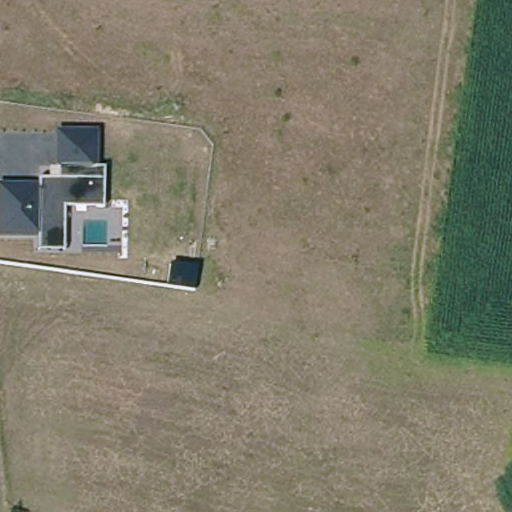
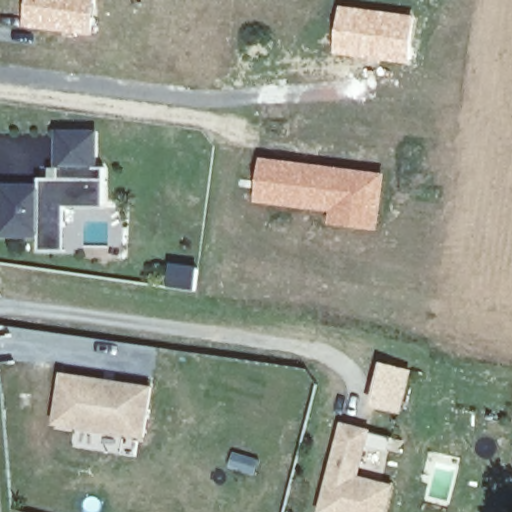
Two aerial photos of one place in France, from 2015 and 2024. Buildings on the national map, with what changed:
new [(28,0),(96,0),(91,36),(24,26),(28,0)]
new [(341,5),(415,16),(408,65),(334,53),(341,5)]
unchanged [(104,206),(64,206),(64,249),(38,249),(37,237),(0,237),(0,183),(39,183),(39,176),(50,176),(50,165),(58,166),(59,129),(99,130),(98,164),(106,165),(104,206)]
new [(261,156),(385,173),(377,232),(327,225),(328,213),(255,203),(261,156)]
unchanged [(199,266),(196,286),(168,283),(171,263),(199,266)]
new [(401,414),(370,406),(381,361),(413,369),(401,414)]
new [(61,381),(151,394),(143,444),(54,430),(61,381)]
new [(360,475),(395,485),(387,512),(318,512),(342,421),(372,428),(360,475)]

